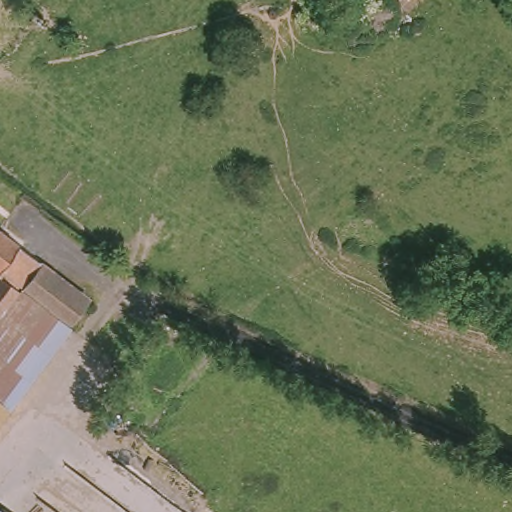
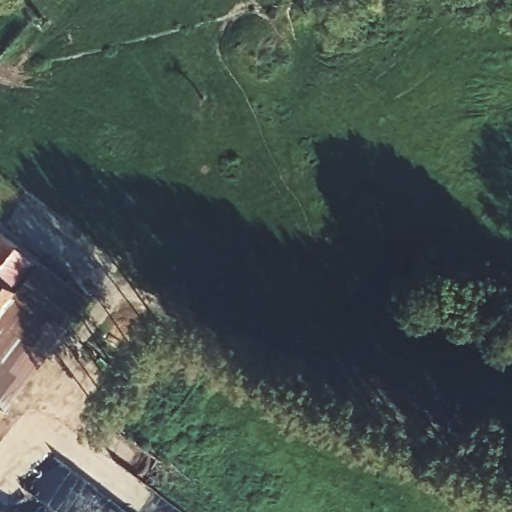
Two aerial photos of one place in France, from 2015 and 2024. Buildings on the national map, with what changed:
unchanged [(0,275),(0,230),(17,243),(39,264),(88,301),(69,328),(7,409),(0,418),(0,290),(7,281),(0,275)]
unchanged [(12,512),(0,512),(0,509),(3,506),(12,512)]

